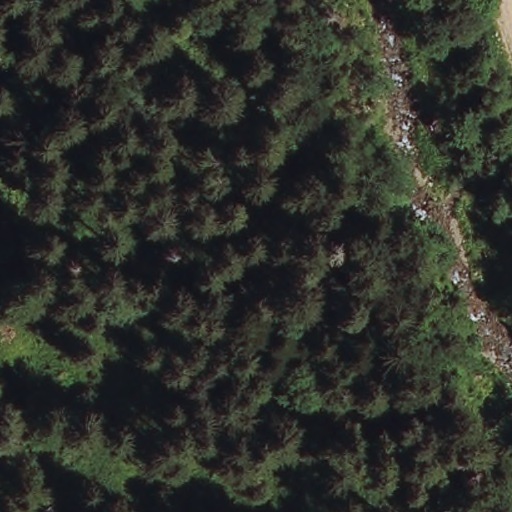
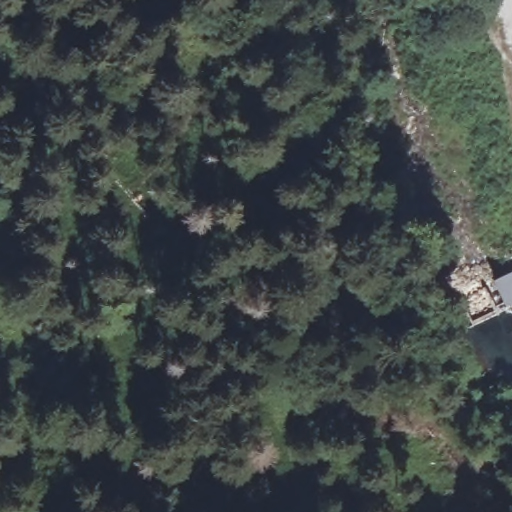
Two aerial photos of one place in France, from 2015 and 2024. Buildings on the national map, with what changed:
new [(512,269),(512,302),(502,306),(491,280),(512,269)]

